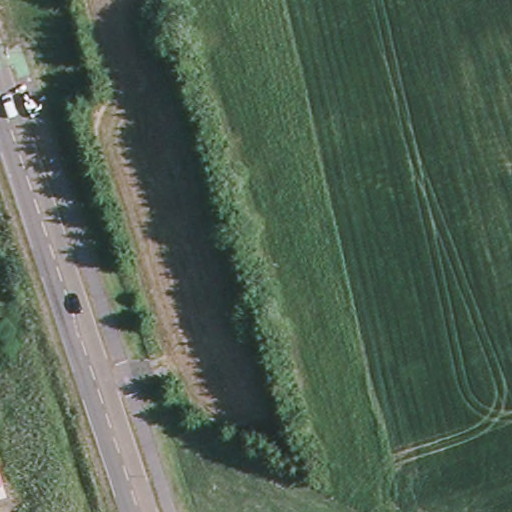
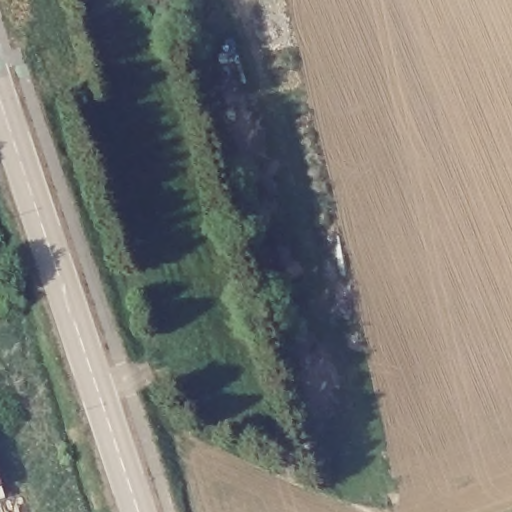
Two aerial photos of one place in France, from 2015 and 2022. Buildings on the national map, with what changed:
unchanged [(2,481),(0,482),(0,473),(2,481)]

